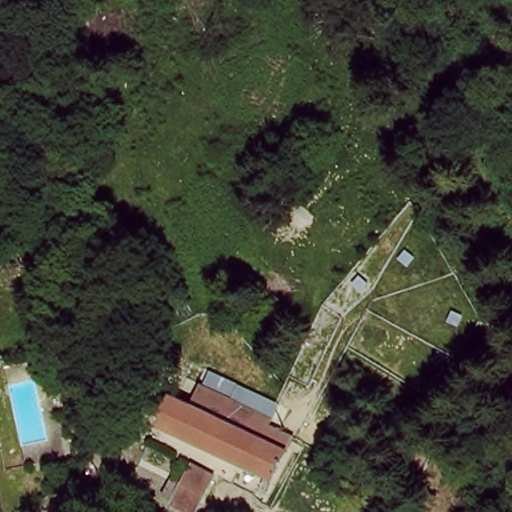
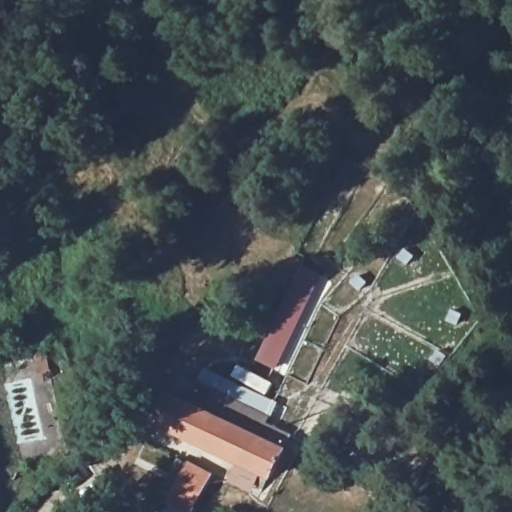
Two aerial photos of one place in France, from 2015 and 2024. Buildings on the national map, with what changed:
new [(299,265),(328,280),(310,314),(307,312),(278,370),(255,360),(299,265)]
unchanged [(283,447),(269,475),(153,422),(166,391),(283,447)]
unchanged [(199,512),(192,512),(171,500),(190,455),(215,473),(199,512)]

